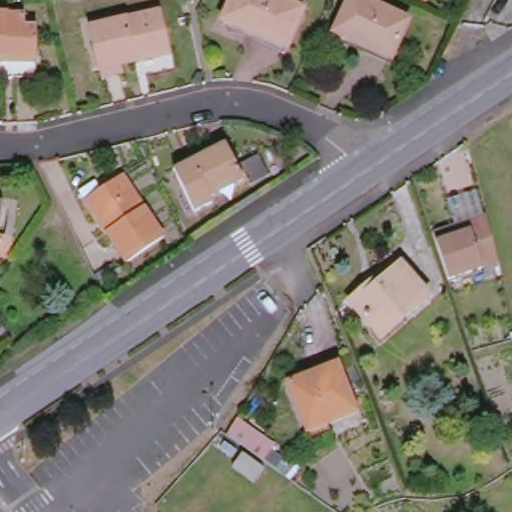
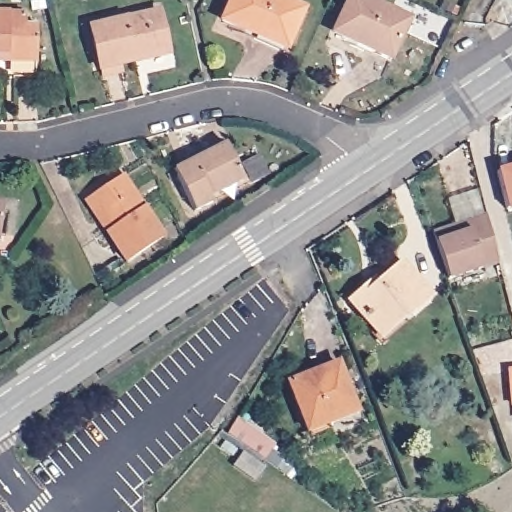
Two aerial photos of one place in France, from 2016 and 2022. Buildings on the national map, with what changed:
unchanged [(232,0),(281,0),(304,10),(289,45),(259,33),(257,37),(223,21),(232,0)]
unchanged [(409,21),(392,59),(335,33),(350,0),(363,0),(409,21)]
unchanged [(159,12),(168,52),(136,59),(136,62),(99,70),(90,28),(159,12)]
unchanged [(26,15),(25,25),(36,25),(36,57),(8,55),(7,62),(0,62),(0,14),(26,15)]
unchanged [(193,167),(191,162),(226,144),(243,180),(211,197),(213,203),(195,212),(176,176),(193,167)]
new [(512,210),(509,211),(498,171),(512,167),(512,210)]
unchanged [(129,261),(108,230),(106,231),(85,200),(93,195),(123,175),(164,237),(129,261)]
unchanged [(3,204),(0,231),(0,204),(3,204)]
unchanged [(499,263),(449,280),(437,244),(434,234),(468,223),(487,216),(499,263)]
unchanged [(376,295),(387,287),(376,276),(395,259),(434,302),(408,325),(406,322),(386,340),(356,307),(374,291),(376,295)]
unchanged [(357,412),(308,431),(289,383),(339,364),(357,412)]
unchanged [(358,377),(363,388),(357,391),(354,383),(349,384),(342,368),(353,364),(358,377)]
unchanged [(264,469),(255,483),(233,467),(243,454),(264,469)]

